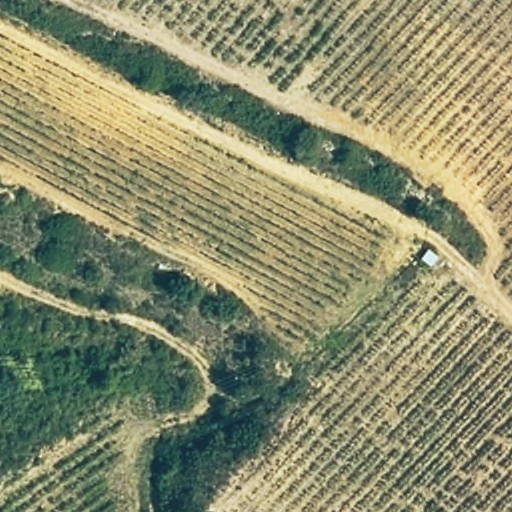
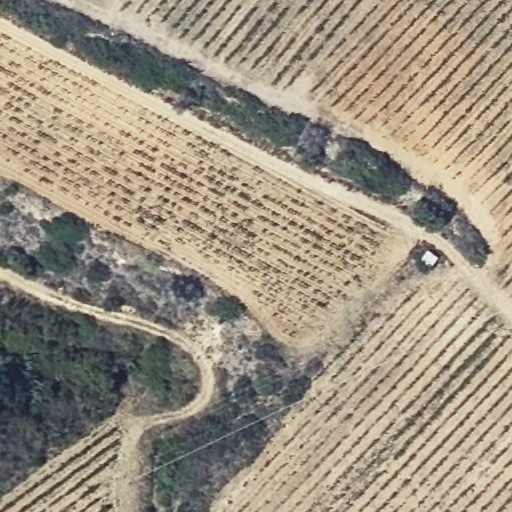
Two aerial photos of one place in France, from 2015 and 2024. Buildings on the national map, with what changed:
unchanged [(425,273),(414,263),(429,247),(440,257),(425,273)]

